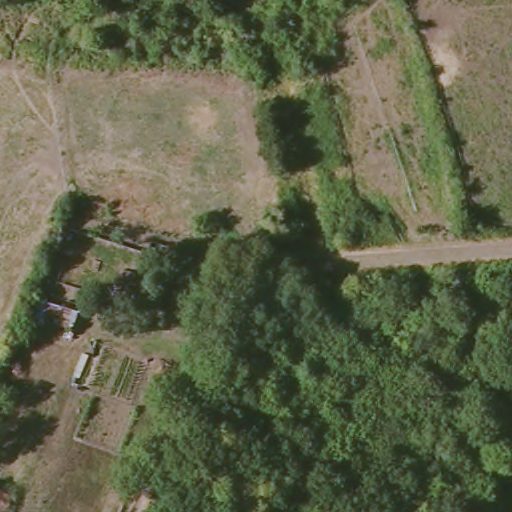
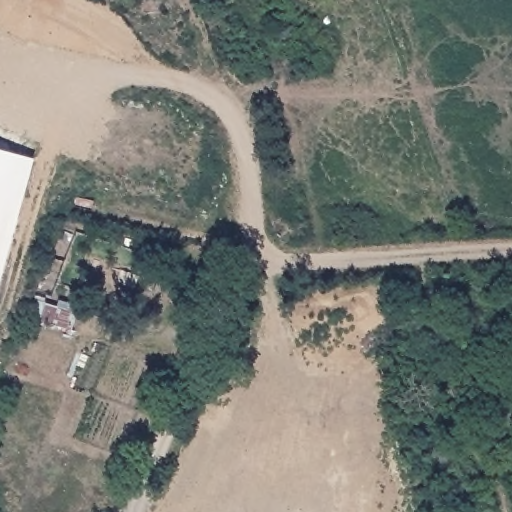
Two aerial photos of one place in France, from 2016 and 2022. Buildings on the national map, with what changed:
new [(0,283),(0,149),(35,158),(0,283)]
unchanged [(139,271),(133,290),(112,286),(117,267),(139,271)]

